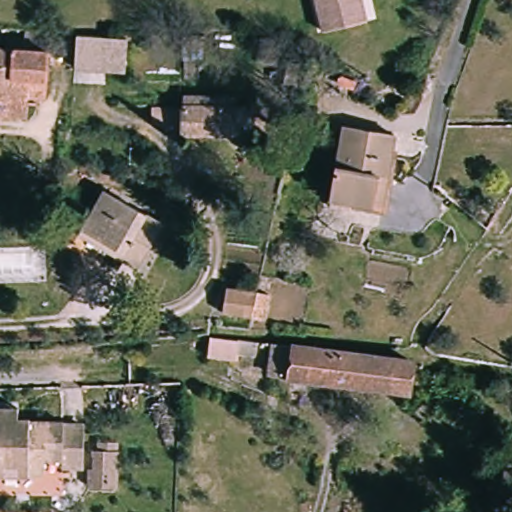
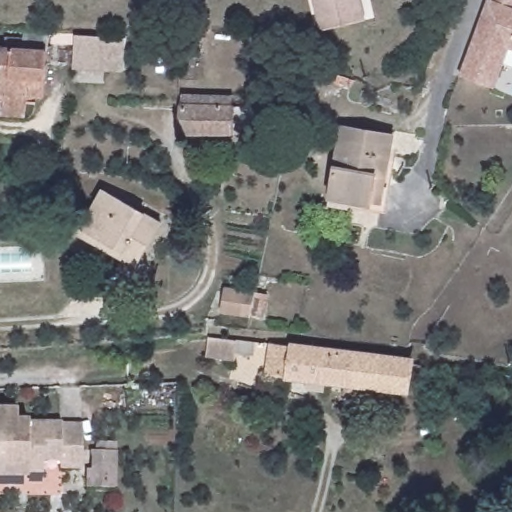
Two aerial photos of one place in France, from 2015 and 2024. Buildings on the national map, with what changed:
unchanged [(313,0),(363,0),(367,20),(320,31),(313,0)]
new [(511,0),(506,11),(512,13),(512,54),(492,45),(477,80),(454,70),(483,1),(484,0),(511,0)]
unchanged [(122,73),(73,70),(75,36),(125,39),(122,73)]
unchanged [(5,45),(5,39),(27,39),(28,47),(50,49),(49,95),(30,94),(16,94),(16,100),(0,100),(0,45),(5,45)]
unchanged [(30,116),(0,115),(0,100),(16,100),(16,94),(30,94),(30,116)]
unchanged [(180,137),(180,98),(230,99),(231,137),(180,137)]
unchanged [(376,205),(335,200),(340,165),(345,129),(397,135),(392,172),(388,206),(376,205)]
unchanged [(285,138),(300,140),(293,170),(279,167),(285,138)]
unchanged [(83,226),(105,188),(161,218),(135,267),(105,251),(78,236),(83,226)]
unchanged [(206,316),(216,317),(222,287),(258,288),(255,320),(242,319),(240,364),(205,361),(206,316)]
unchanged [(267,373),(272,342),(272,340),(294,342),(330,346),(323,381),(290,376),(267,373)]
unchanged [(343,383),(323,381),(330,346),(395,353),(417,358),(410,392),(358,385),(356,396),(342,394),(343,383)]
unchanged [(0,477),(0,420),(66,420),(66,427),(84,428),(84,466),(65,465),(65,457),(46,457),(46,469),(1,468),(1,477),(0,477)]
unchanged [(115,488),(85,486),(86,470),(96,470),(96,438),(115,443),(115,488)]

